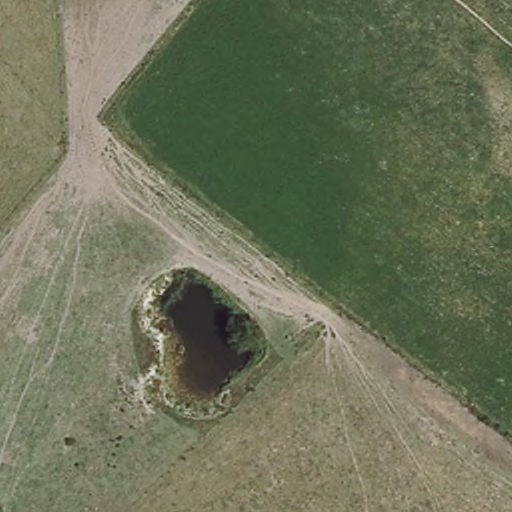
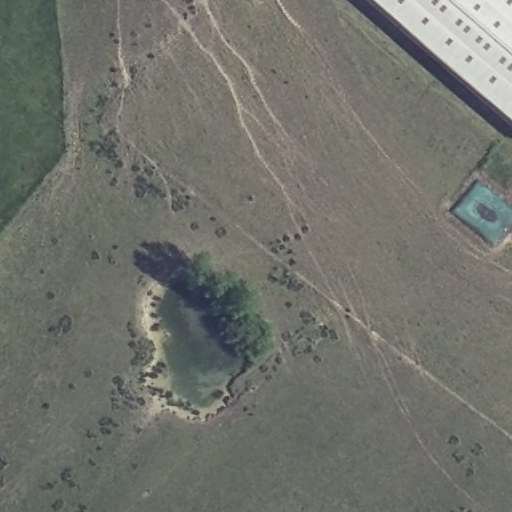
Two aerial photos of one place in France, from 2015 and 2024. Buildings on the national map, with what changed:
new [(512,131),(361,0),(512,0),(512,131)]

